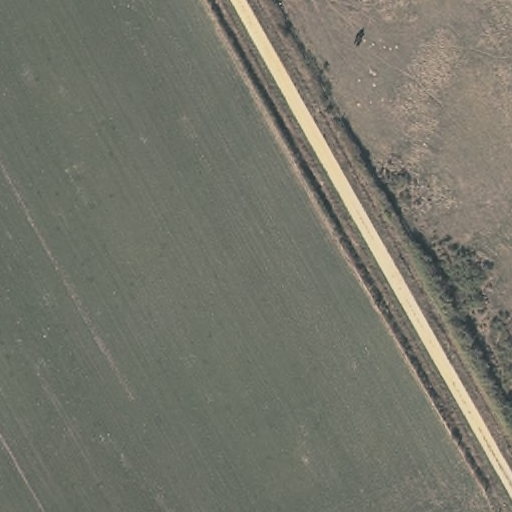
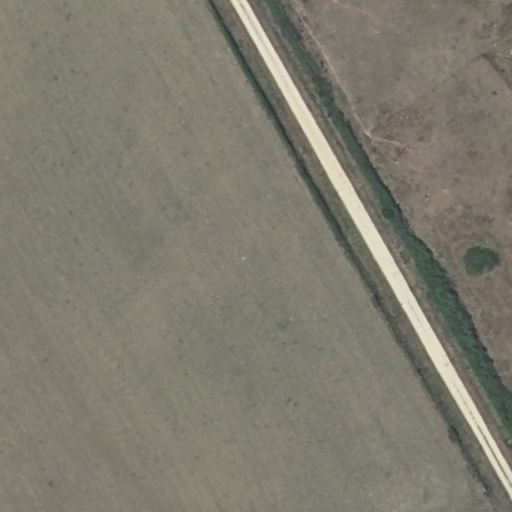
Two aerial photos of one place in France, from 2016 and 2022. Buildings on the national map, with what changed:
[]

